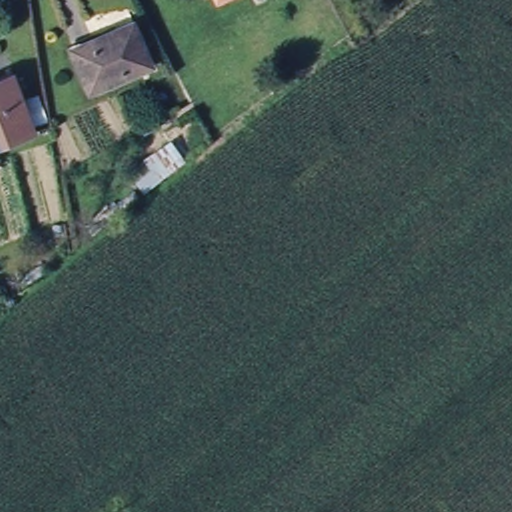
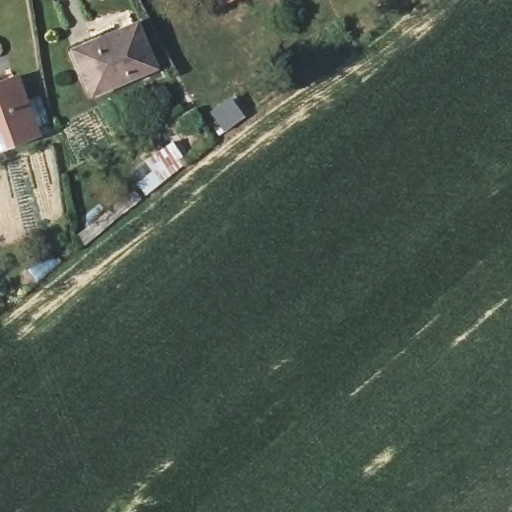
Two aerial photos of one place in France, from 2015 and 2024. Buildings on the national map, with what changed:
unchanged [(128,25),(147,68),(88,94),(70,50),(128,25)]
unchanged [(10,79),(31,134),(0,145),(0,83),(10,79)]
unchanged [(132,180),(146,175),(136,157),(168,139),(183,166),(141,198),(132,180)]

